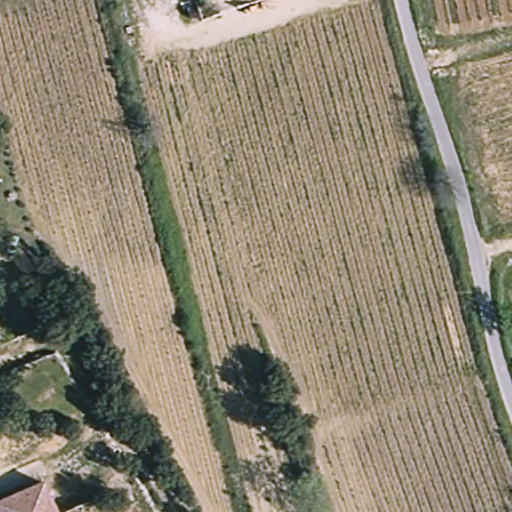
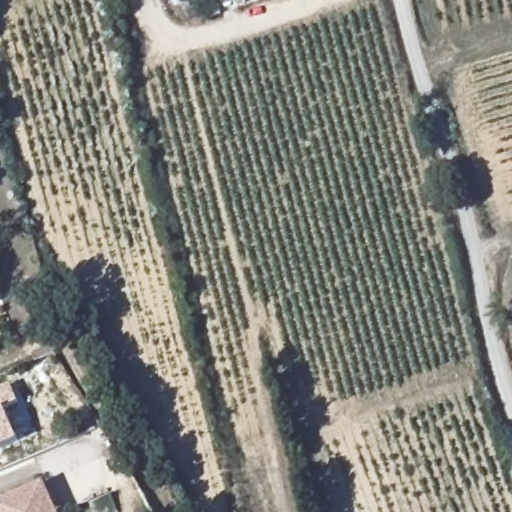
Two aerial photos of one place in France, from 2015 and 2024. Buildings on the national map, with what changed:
new [(0,450),(0,392),(13,387),(20,405),(7,411),(20,441),(0,450)]
unchanged [(0,503),(48,483),(60,512),(0,512),(0,511),(0,503)]

